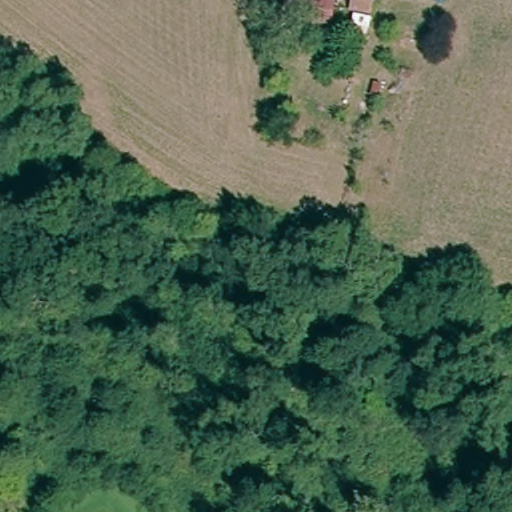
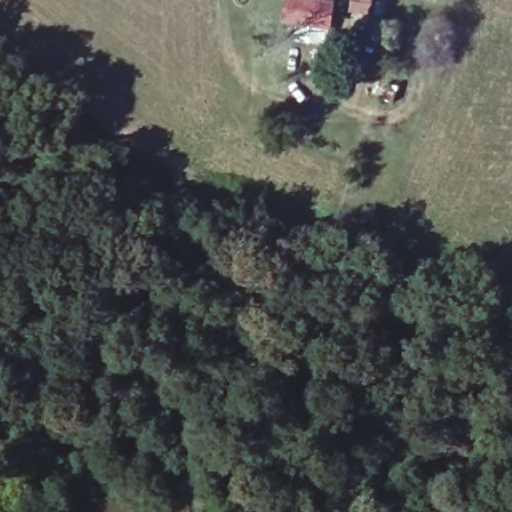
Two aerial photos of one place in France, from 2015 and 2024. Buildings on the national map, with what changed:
unchanged [(331,31),(297,26),(286,25),(289,0),(310,0),(336,3),(331,31)]
unchanged [(345,16),(346,4),(347,0),(371,0),(367,19),(345,16)]

